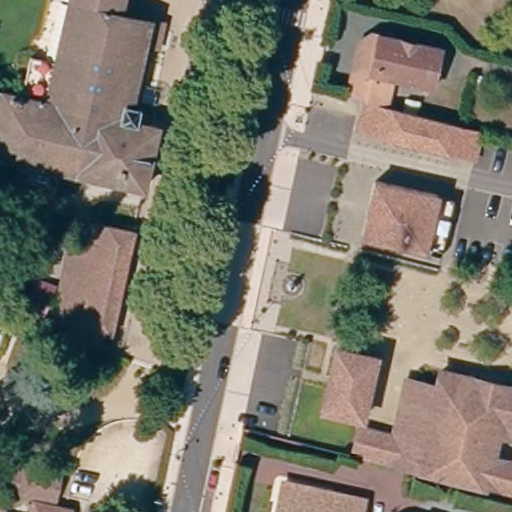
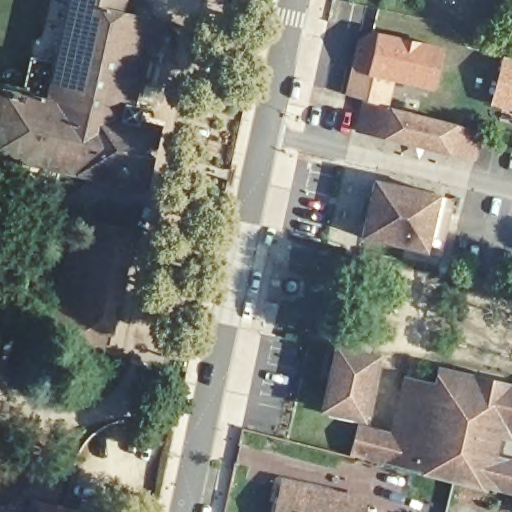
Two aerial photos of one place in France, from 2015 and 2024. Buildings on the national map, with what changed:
unchanged [(19,177),(21,158),(0,154),(0,113),(5,90),(22,93),(30,60),(62,68),(78,0),(124,0),(122,10),(141,15),(135,34),(107,81),(90,109),(76,170),(60,167),(57,185),(19,177)]
unchanged [(152,158),(146,185),(76,170),(90,109),(107,81),(135,34),(141,15),(148,17),(166,21),(161,42),(150,39),(135,104),(141,105),(140,119),(160,123),(152,158)]
unchanged [(360,37),(370,30),(441,46),(433,86),(391,77),(386,102),(359,96),(346,93),(360,37)]
new [(512,57),(512,111),(488,104),(501,54),(512,57)]
unchanged [(448,149),(353,128),(360,103),(455,122),(448,149)]
unchanged [(363,235),(377,181),(442,195),(430,250),(363,235)]
unchanged [(83,333),(70,330),(72,321),(56,317),(72,247),(75,237),(85,237),(89,219),(135,230),(122,285),(112,327),(109,327),(106,338),(83,333)]
unchanged [(60,283),(44,317),(25,307),(40,274),(60,283)]
unchanged [(379,357),(364,416),(325,407),(337,347),(379,357)]
unchanged [(441,473),(417,467),(419,462),(357,448),(363,424),(393,430),(404,382),(407,371),(440,378),(443,366),(512,382),(512,435),(500,432),(495,454),(512,458),(512,492),(498,488),(441,473)]
unchanged [(54,495),(21,488),(27,464),(59,472),(54,495)]
unchanged [(274,512),(275,508),(280,485),(290,488),(363,505),(362,512),(274,512)]
unchanged [(52,501),(71,507),(70,512),(32,512),(35,498),(52,501)]

